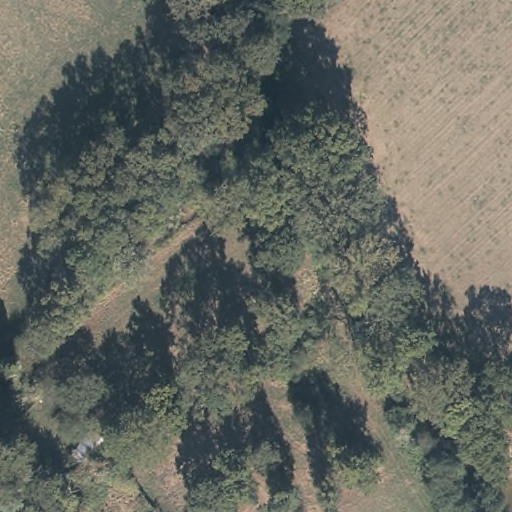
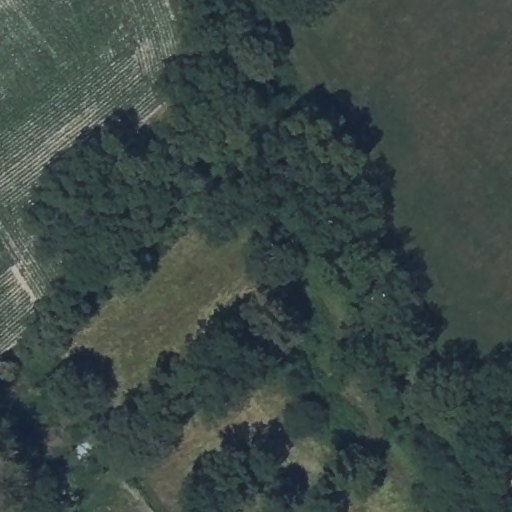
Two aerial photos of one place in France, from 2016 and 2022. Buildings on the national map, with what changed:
unchanged [(100,424),(119,445),(71,486),(53,467),(100,424)]

